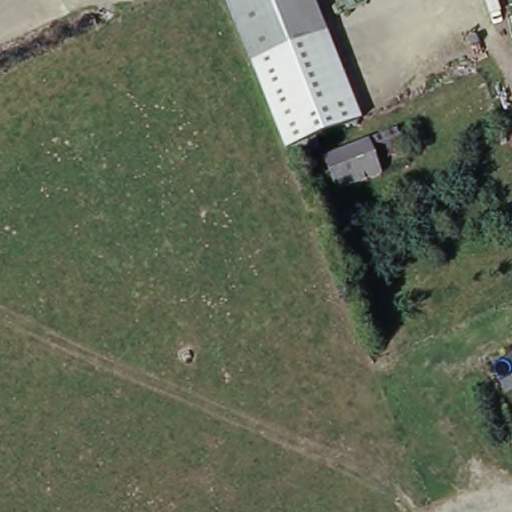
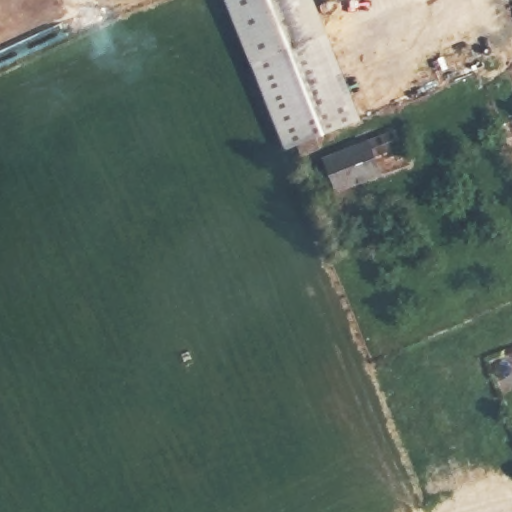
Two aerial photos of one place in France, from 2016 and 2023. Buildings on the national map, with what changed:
unchanged [(254,67),(253,66),(226,0),(314,0),(328,37),(254,67)]
unchanged [(304,159),(299,146),(287,150),(254,67),(328,37),(362,120),(316,139),(321,151),(304,159)]
unchanged [(397,124),(404,144),(377,154),(381,166),(338,183),(326,151),(397,124)]

